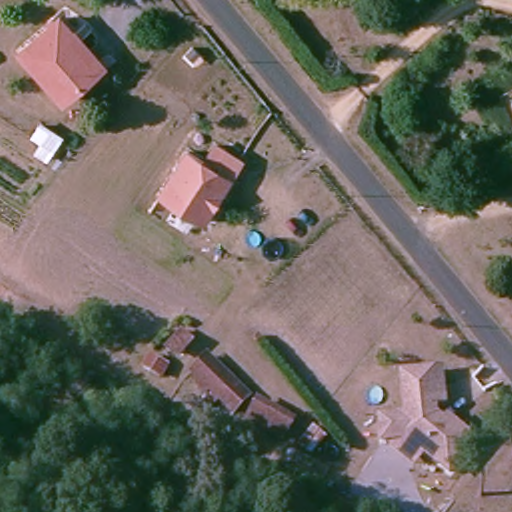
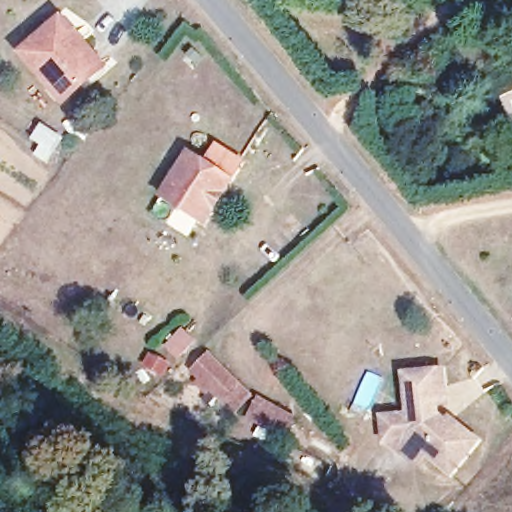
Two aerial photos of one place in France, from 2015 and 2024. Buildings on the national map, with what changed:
unchanged [(103,66),(63,104),(19,54),(60,17),(103,66)]
unchanged [(204,227),(157,197),(185,150),(200,157),(210,138),(243,157),(204,227)]
unchanged [(228,413),(188,370),(207,353),(251,393),(228,413)]
unchanged [(449,410),(503,472),(446,479),(429,461),(415,471),(382,444),(378,414),(402,412),(401,371),(449,368),(449,410)]
unchanged [(245,420),(257,392),(294,413),(285,438),(245,420)]

